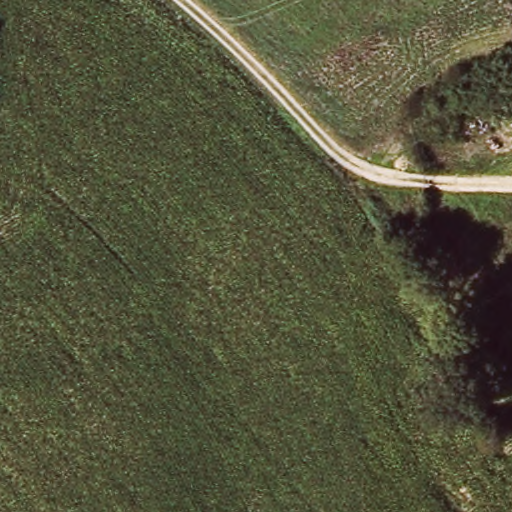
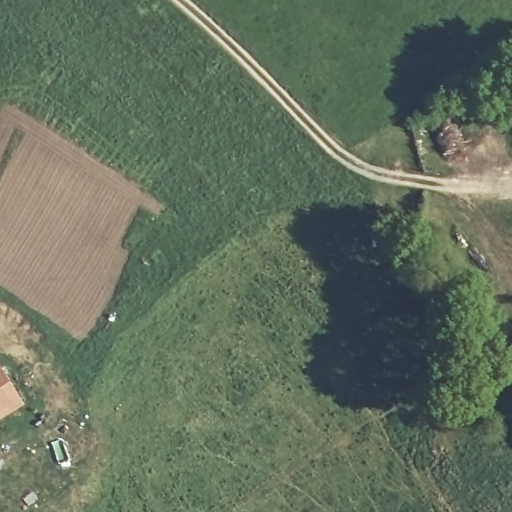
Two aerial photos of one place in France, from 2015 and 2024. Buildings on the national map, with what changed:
new [(0,420),(0,366),(23,405),(0,420)]

